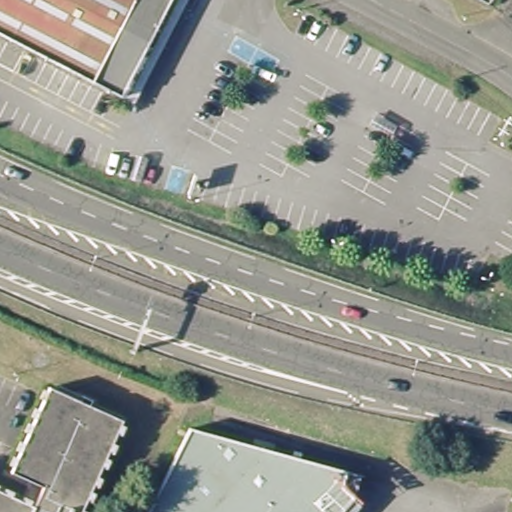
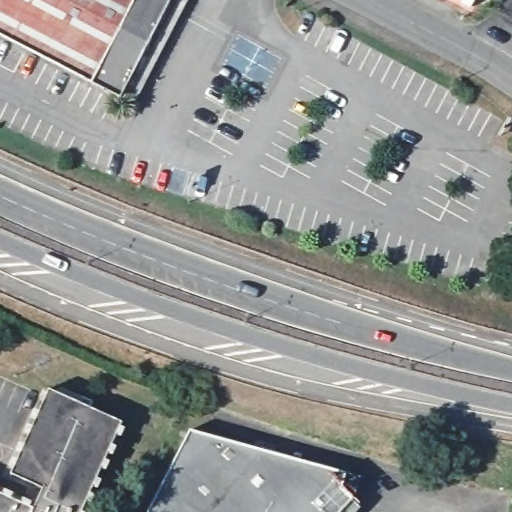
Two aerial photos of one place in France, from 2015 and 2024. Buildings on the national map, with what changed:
unchanged [(0,40),(0,0),(166,0),(115,99),(114,99),(0,40)]
unchanged [(166,0),(183,0),(128,106),(115,99),(166,0)]
unchanged [(41,486),(12,470),(49,387),(126,422),(85,512),(0,512),(0,490),(31,504),(41,486)]
unchanged [(192,428),(212,434),(349,472),(344,488),(354,506),(348,512),(148,512),(185,441),(192,428)]

